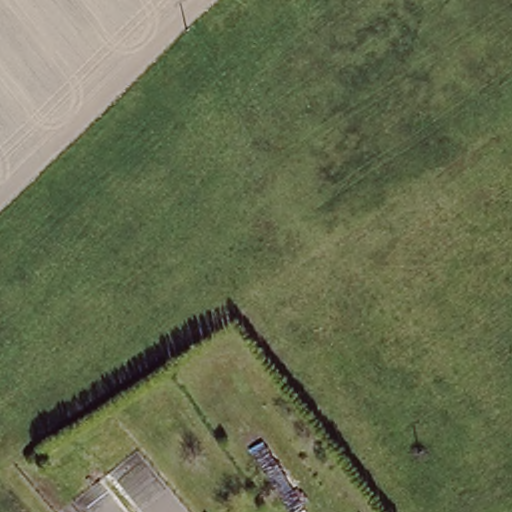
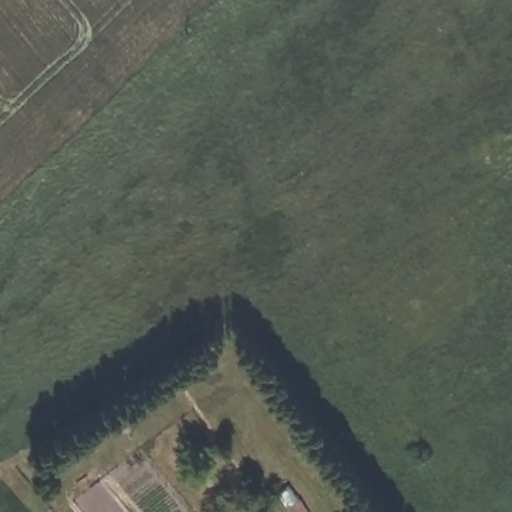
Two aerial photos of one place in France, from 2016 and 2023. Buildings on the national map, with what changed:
[]

